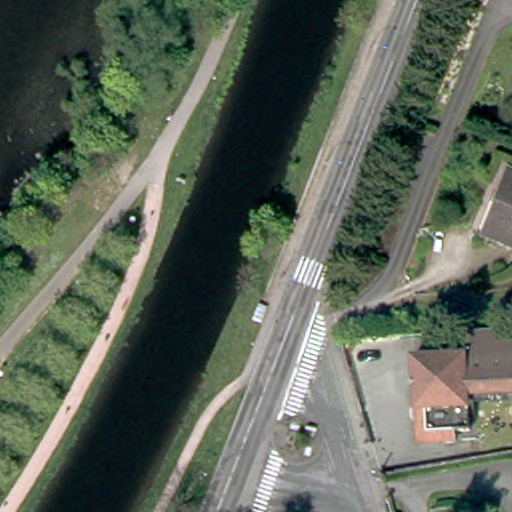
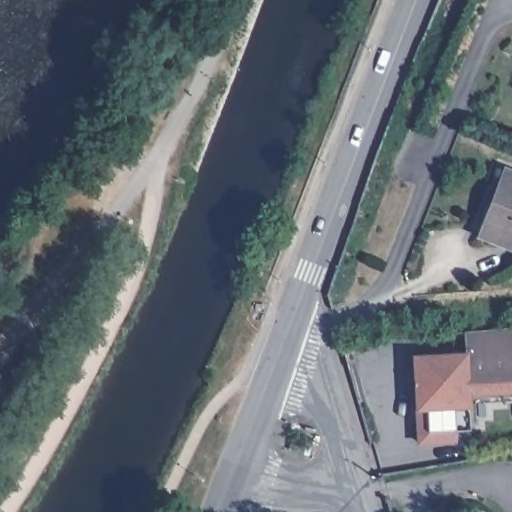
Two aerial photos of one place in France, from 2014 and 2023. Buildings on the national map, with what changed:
unchanged [(512,178),(512,254),(480,242),(505,175),(512,178)]
unchanged [(417,432),(415,402),(415,387),(413,356),(435,356),(439,355),(467,354),(466,349),(465,333),(512,329),(512,391),(497,391),(487,391),(488,401),(485,401),(468,401),(469,416),(469,429),(455,430),(455,441),(417,442),(417,432)]

